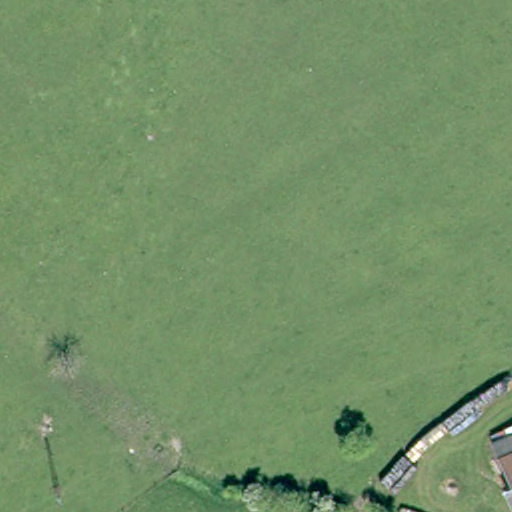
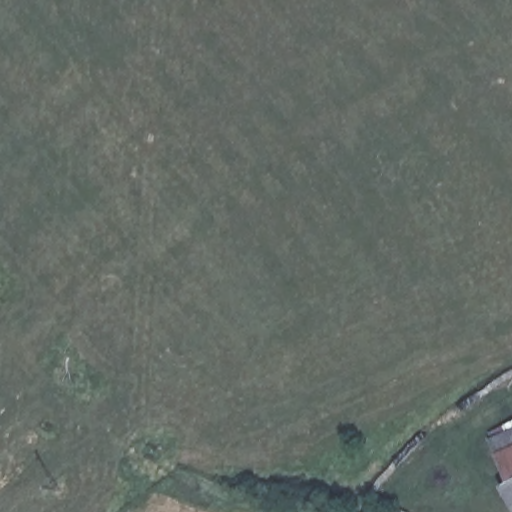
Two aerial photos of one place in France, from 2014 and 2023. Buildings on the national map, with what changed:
unchanged [(512,424),(512,472),(496,431),(512,424)]
unchanged [(512,479),(512,488),(509,482),(512,479)]

